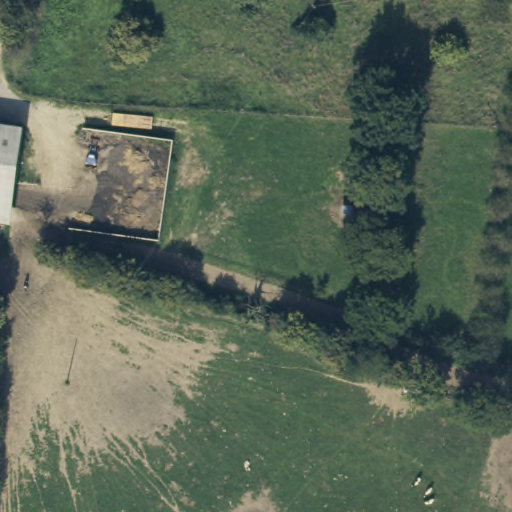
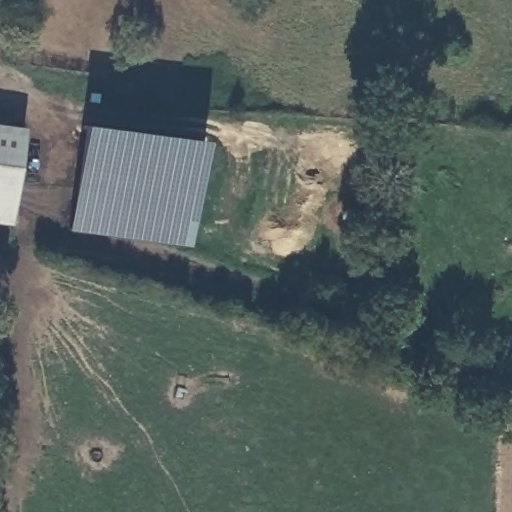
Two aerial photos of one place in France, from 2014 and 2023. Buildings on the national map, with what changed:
unchanged [(11,226),(0,225),(0,125),(23,129),(11,226)]
new [(190,248),(68,232),(83,127),(204,142),(190,248)]

